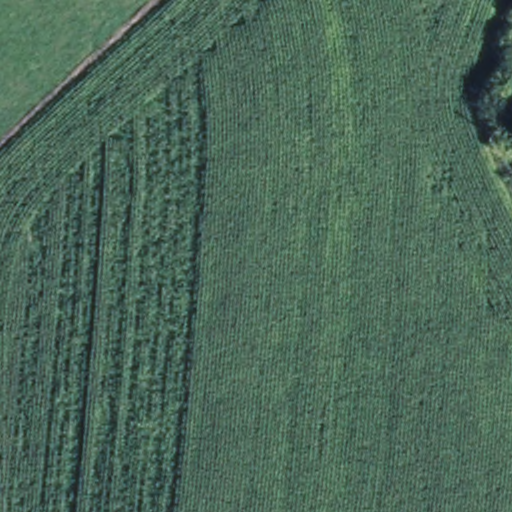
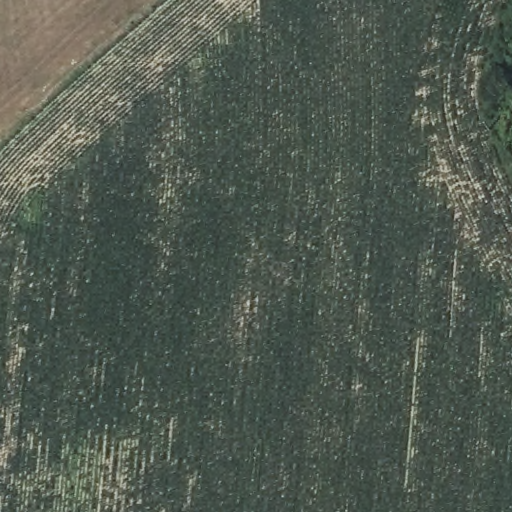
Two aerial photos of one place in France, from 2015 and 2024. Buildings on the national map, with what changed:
[]

